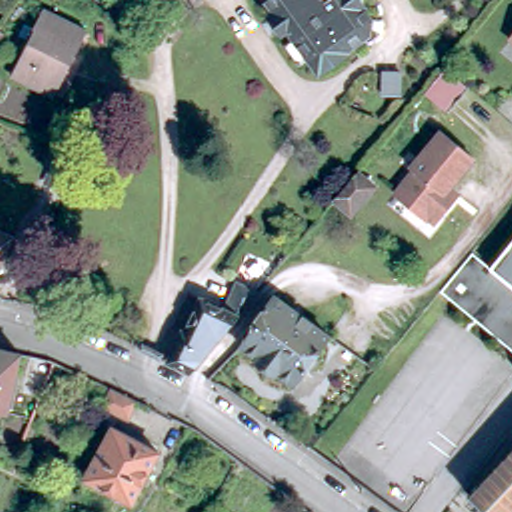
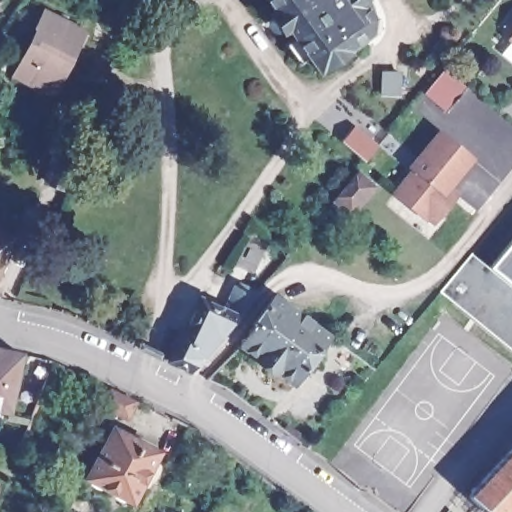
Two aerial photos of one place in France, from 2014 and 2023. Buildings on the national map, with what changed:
unchanged [(376,14),(379,17),(376,31),(351,49),(351,53),(343,63),(336,66),(333,66),(330,64),(324,66),(318,56),(307,61),(294,42),(310,30),(303,21),(291,28),(280,12),(284,8),(279,0),(371,0),(369,5),(376,14)]
unchanged [(39,25),(47,9),(86,29),(70,62),(66,60),(51,90),(18,74),(41,26),(39,25)]
unchanged [(507,36),(512,29),(512,41),(507,36)]
unchanged [(439,72),(463,91),(443,116),(419,97),(439,72)]
unchanged [(421,219),(393,195),(410,174),(407,170),(435,135),(468,161),(444,191),(452,197),(447,204),(436,216),(429,225),(421,219)]
unchanged [(73,165),(63,190),(45,182),(55,157),(73,165)]
unchanged [(369,189),(350,212),(334,200),(354,176),(369,189)]
unchanged [(0,259),(0,225),(13,230),(0,259)]
unchanged [(473,310),(476,307),(443,280),(473,243),(493,257),(512,234),(512,344),(473,310)]
unchanged [(164,358),(176,331),(178,331),(181,323),(194,297),(217,306),(218,307),(232,280),(253,288),(251,290),(233,311),(219,328),(186,369),(164,358)]
unchanged [(238,338),(249,323),(248,322),(266,300),(270,295),(271,295),(323,335),(286,381),(269,368),(268,370),(252,357),(253,355),(234,341),(238,338)]
unchanged [(5,413),(0,412),(0,349),(18,353),(5,413)]
unchanged [(100,407),(109,389),(134,400),(128,418),(100,407)]
unchanged [(157,453),(129,505),(84,481),(111,430),(157,453)]
unchanged [(508,512),(493,512),(473,492),(512,451),(512,507),(508,512)]

